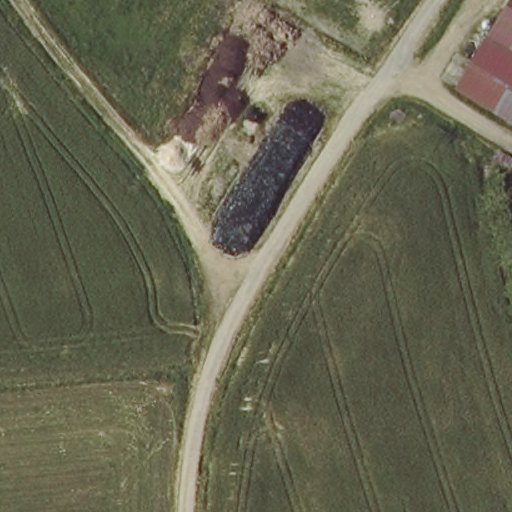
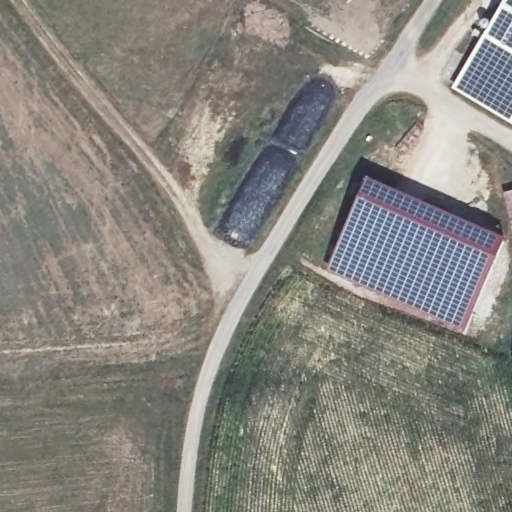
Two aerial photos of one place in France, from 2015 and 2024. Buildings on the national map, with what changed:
unchanged [(504,12),(511,0),(512,0),(512,51),(489,38),(504,12)]
unchanged [(489,38),(512,51),(512,125),(480,107),(457,94),(474,64),(489,38)]
new [(328,272),(370,180),(505,241),(465,333),(328,272)]
unchanged [(505,189),(512,189),(512,219),(505,189)]

